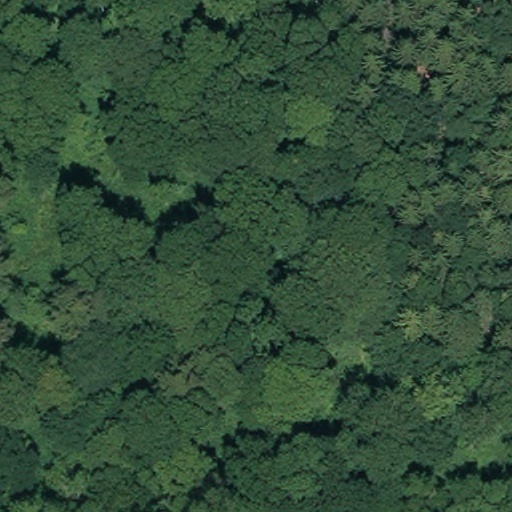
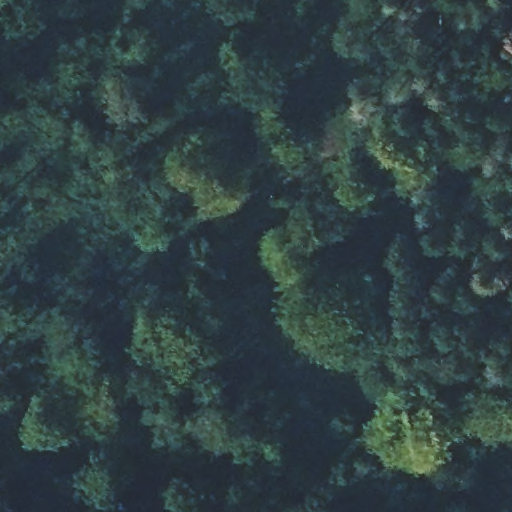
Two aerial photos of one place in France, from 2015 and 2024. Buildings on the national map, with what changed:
[]

